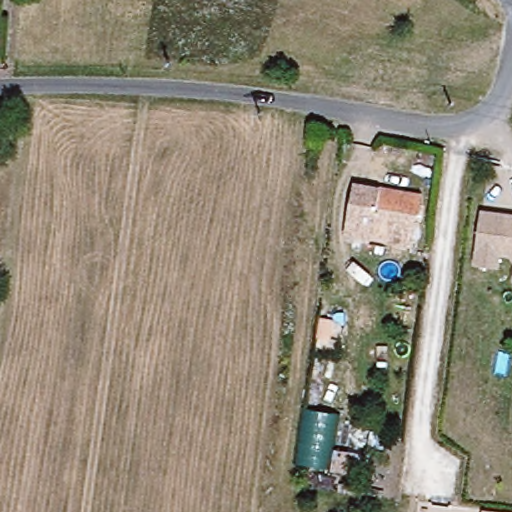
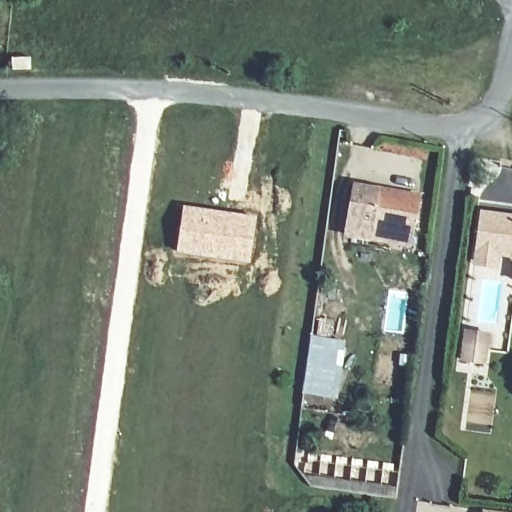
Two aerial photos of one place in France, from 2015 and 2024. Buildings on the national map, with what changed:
unchanged [(391,248),(344,241),(353,185),(383,191),(422,195),(422,208),(419,207),(415,232),(412,252),(391,248)]
new [(182,204),(256,215),(249,264),(175,251),(182,204)]
unchanged [(512,214),(512,263),(510,257),(499,255),(497,271),(470,267),(477,210),(512,214)]
unchanged [(512,273),(512,282),(511,282),(512,273)]
new [(310,334),(346,340),(337,400),(301,394),(310,334)]
new [(397,486),(395,498),(302,487),(304,475),(397,486)]
unchanged [(483,512),(483,511),(496,512),(483,512)]

